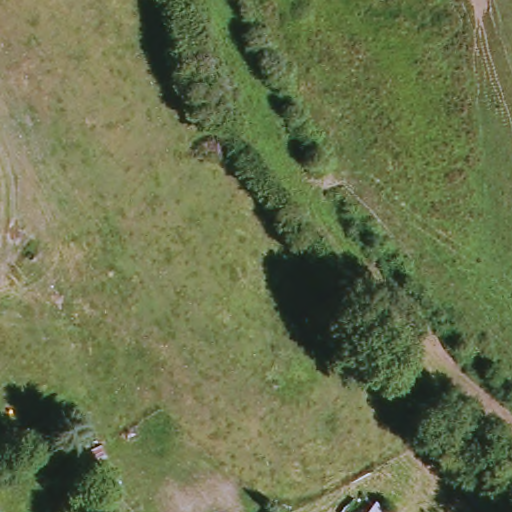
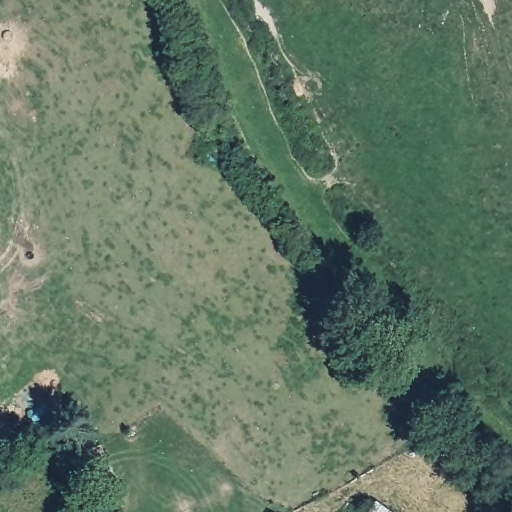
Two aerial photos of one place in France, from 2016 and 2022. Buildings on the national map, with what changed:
unchanged [(377,499),(395,512),(368,512),(377,499)]

